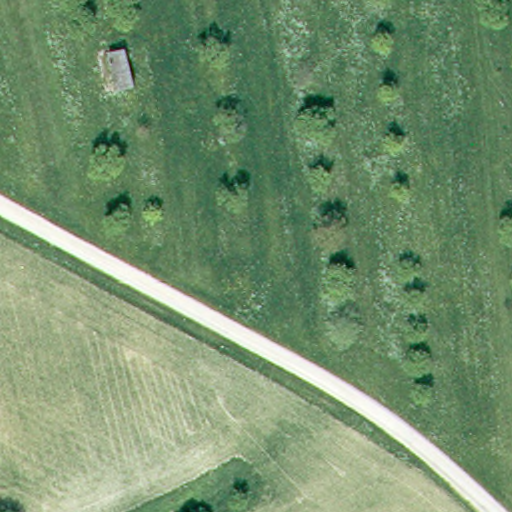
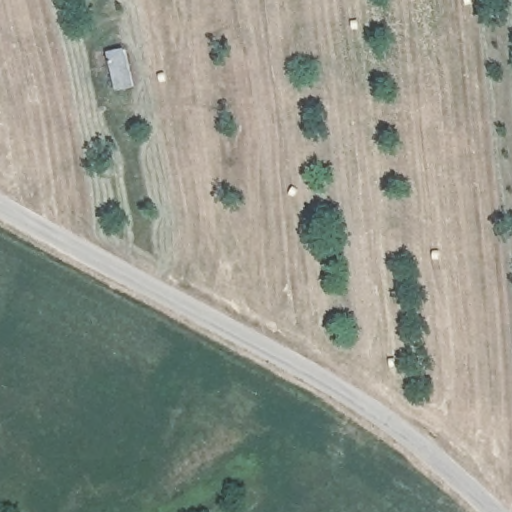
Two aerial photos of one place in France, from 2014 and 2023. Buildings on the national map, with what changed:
unchanged [(119,90),(110,56),(125,50),(135,87),(119,90)]

